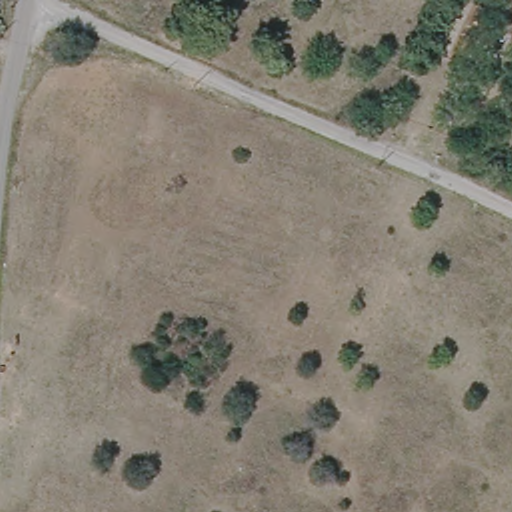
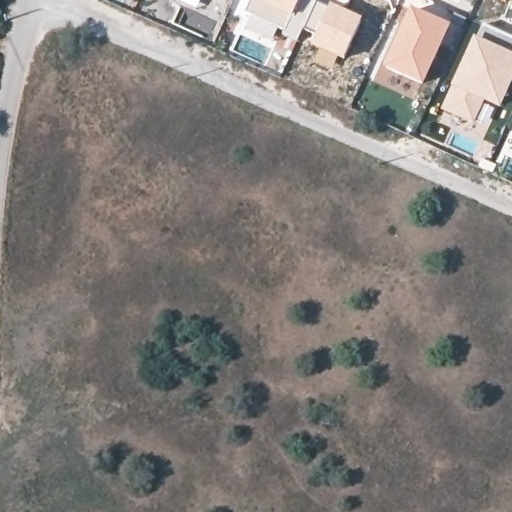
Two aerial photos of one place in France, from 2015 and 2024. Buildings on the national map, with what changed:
new [(310,46),(311,45),(315,35),(304,29),(297,42),(283,33),(277,30),(248,15),(243,13),(249,0),(316,0),(329,5),(362,20),(343,62),(337,60),(332,70),(313,61),(318,50),(310,46)]
demolished [(431,48),(454,0),(471,0),(446,55),(431,48)]
new [(509,4),(511,0),(512,0),(512,6),(509,4)]
new [(410,7),(420,11),(450,25),(422,87),(380,69),(410,7)]
new [(475,125),(440,110),(475,37),(482,25),(512,38),(512,82),(499,110),(496,110),(495,110),(487,127),(476,122),(475,125)]

